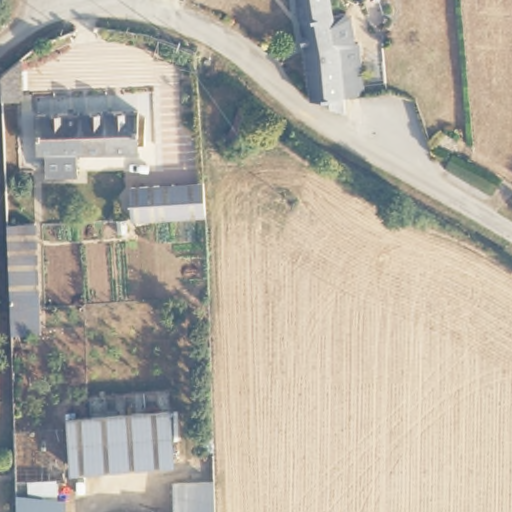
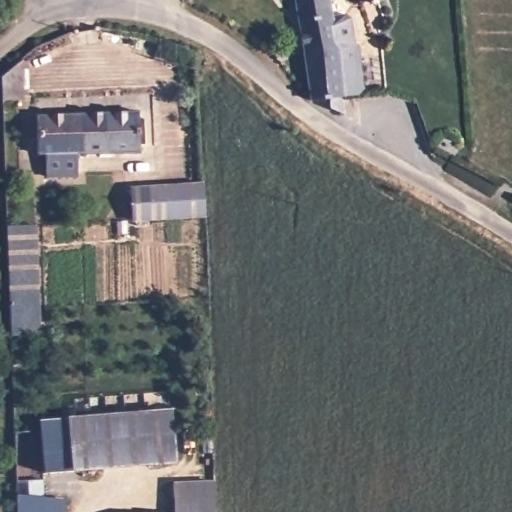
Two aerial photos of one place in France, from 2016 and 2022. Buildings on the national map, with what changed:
unchanged [(327,0),(337,35),(300,41),(291,0),(327,0)]
unchanged [(56,50),(5,89),(4,71),(15,62),(11,57),(44,34),(56,50)]
unchanged [(337,35),(340,42),(358,42),(362,92),(342,96),(345,110),(330,105),(328,92),(310,95),(300,41),(337,35)]
unchanged [(219,146),(244,98),(265,109),(241,157),(219,146)]
unchanged [(47,148),(40,148),(40,111),(139,108),(140,117),(147,117),(147,138),(140,138),(140,145),(78,147),(79,169),(49,170),(47,148)]
unchanged [(207,213),(136,217),(135,188),(205,183),(207,213)]
unchanged [(40,334),(12,333),(6,226),(36,225),(40,334)]
unchanged [(61,410),(168,401),(170,458),(66,466),(61,410)]
unchanged [(13,431),(61,430),(66,480),(56,480),(27,480),(16,480),(13,431)]
unchanged [(145,509),(166,511),(166,477),(210,480),(211,512),(145,512),(145,509)]
unchanged [(16,493),(27,495),(27,480),(56,480),(58,497),(66,498),(65,512),(16,512),(16,493)]

